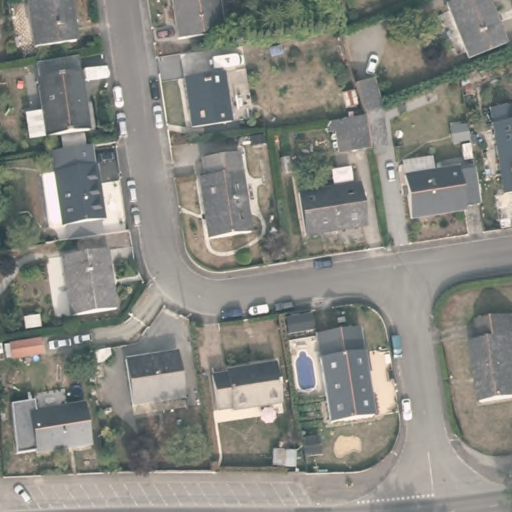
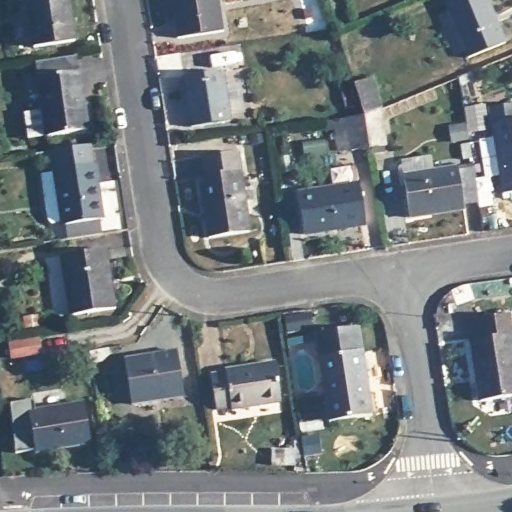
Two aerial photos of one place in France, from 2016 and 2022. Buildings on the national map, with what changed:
unchanged [(29,0),(69,0),(75,42),(32,49),(26,1),(29,0)]
unchanged [(222,32),(178,39),(172,0),(217,0),(222,32)]
unchanged [(456,0),(489,0),(506,45),(468,60),(446,4),(456,0)]
unchanged [(81,57),(95,131),(34,142),(29,114),(46,111),(39,64),(81,57)]
unchanged [(191,128),(184,78),(221,72),(222,76),(243,72),(249,110),(227,112),(229,122),(191,128)]
unchanged [(353,84),(373,78),(382,109),(387,147),(370,150),(336,153),(334,132),(326,132),(325,122),(365,116),(353,84)]
unchanged [(507,104),(510,119),(512,119),(512,191),(493,195),(480,108),(507,104)]
unchanged [(67,230),(65,216),(62,216),(62,212),(47,215),(42,181),(40,167),(55,165),(54,161),(57,161),(55,141),(90,136),(92,156),(95,155),(102,211),(101,211),(104,224),(67,230)]
unchanged [(237,152),(250,233),(209,239),(199,177),(205,176),(202,157),(237,152)]
unchanged [(405,219),(399,176),(397,165),(425,162),(426,172),(453,167),(454,171),(469,169),(475,205),(460,207),(460,211),(405,219)]
unchanged [(360,184),(366,226),(304,235),(297,194),(360,184)]
unchanged [(107,250),(116,309),(69,316),(60,257),(107,250)]
unchanged [(471,341),(481,339),(478,320),(510,315),(512,314),(512,397),(480,402),(471,341)]
unchanged [(30,337),(40,335),(42,350),(12,355),(10,340),(30,337)]
unchanged [(358,342),(372,432),(330,437),(316,349),(358,342)]
unchanged [(177,351),(184,397),(132,405),(125,359),(177,351)]
unchanged [(92,371),(82,372),(80,360),(90,358),(92,371)]
unchanged [(226,372),(225,370),(275,362),(281,405),(232,412),(231,410),(216,412),(211,375),(226,372)]
unchanged [(14,390),(15,405),(1,406),(0,391),(14,390)]
unchanged [(84,402),(90,444),(35,452),(30,412),(84,402)]
unchanged [(295,450),(295,467),(271,467),(271,450),(295,450)]

